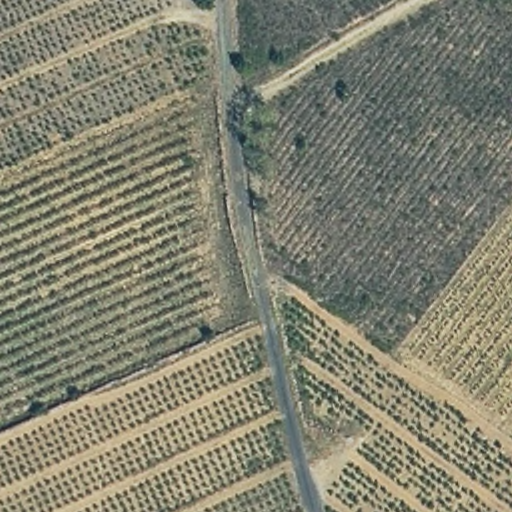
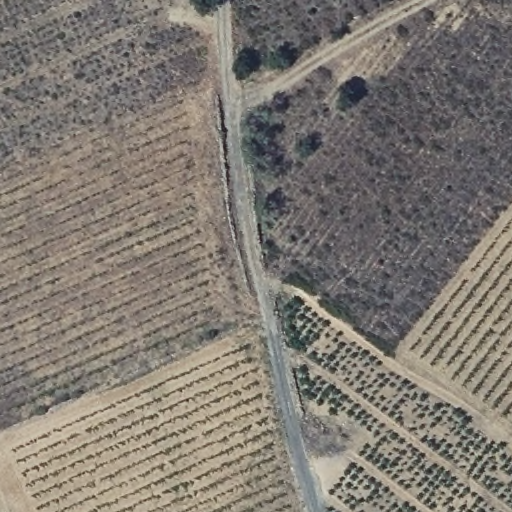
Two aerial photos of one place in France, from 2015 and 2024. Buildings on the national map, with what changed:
[]

